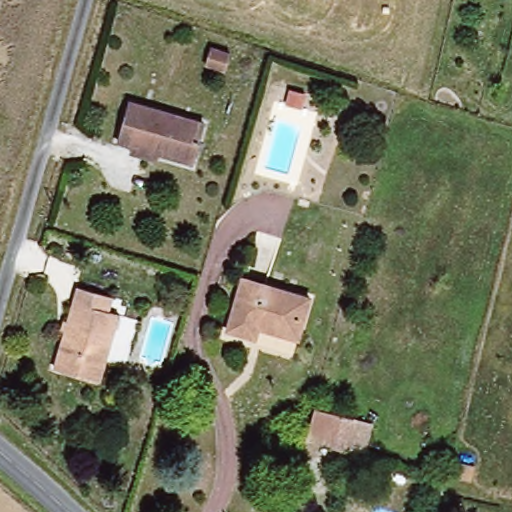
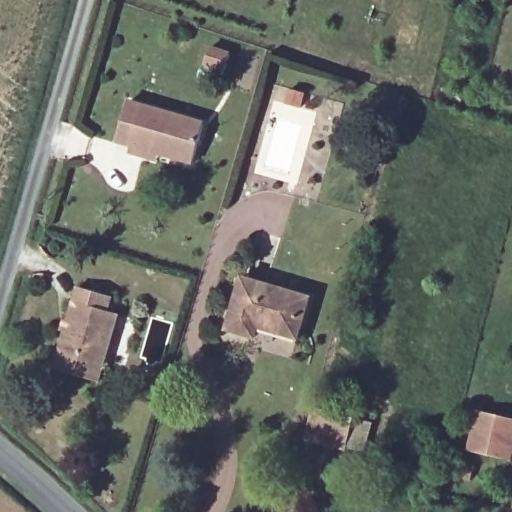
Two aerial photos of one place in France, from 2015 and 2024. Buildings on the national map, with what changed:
unchanged [(226,66),(205,61),(210,44),(230,49),(226,66)]
unchanged [(290,86),(305,91),(300,105),(285,100),(290,86)]
unchanged [(117,140),(129,100),(203,121),(191,161),(158,152),(156,161),(129,154),(131,145),(117,140)]
unchanged [(309,297),(297,337),(258,325),(254,336),(227,328),(242,277),(309,297)]
unchanged [(99,360),(104,361),(98,382),(53,368),(78,287),(110,296),(106,312),(111,313),(99,360)]
unchanged [(354,415),(345,445),(305,434),(314,403),(354,415)]
new [(468,451),(476,411),(512,420),(512,451),(509,461),(468,451)]
unchanged [(467,478),(452,474),(456,459),(471,463),(467,478)]

